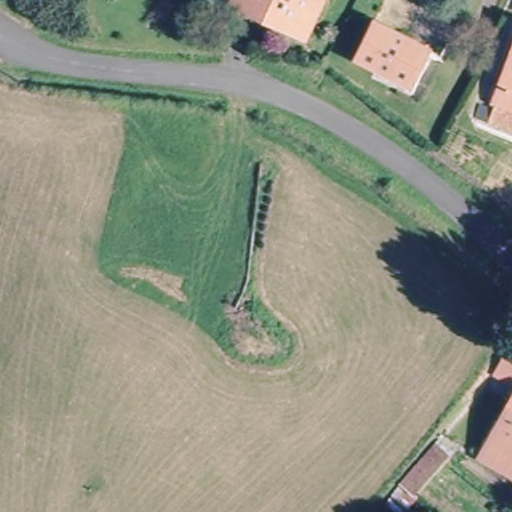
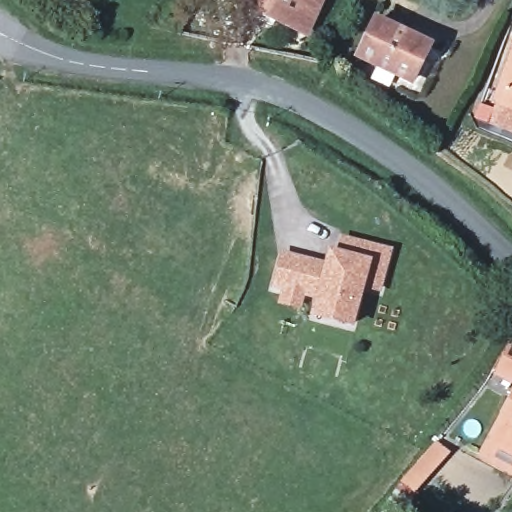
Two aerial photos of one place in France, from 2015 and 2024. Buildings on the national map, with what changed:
unchanged [(235,0),(320,0),(298,37),(235,0)]
unchanged [(408,85),(356,59),(375,22),(426,51),(408,85)]
unchanged [(512,64),(512,111),(494,102),(512,64)]
new [(338,236),(392,250),(379,295),(363,291),(352,331),(308,320),(313,300),(305,298),(301,312),(276,305),(279,291),(269,289),(278,251),(323,262),(327,250),(335,252),(338,236)]
unchanged [(512,344),(512,384),(495,371),(512,344)]
unchanged [(512,400),(512,477),(477,455),(512,400)]
unchanged [(451,445),(419,485),(406,473),(440,435),(451,445)]

